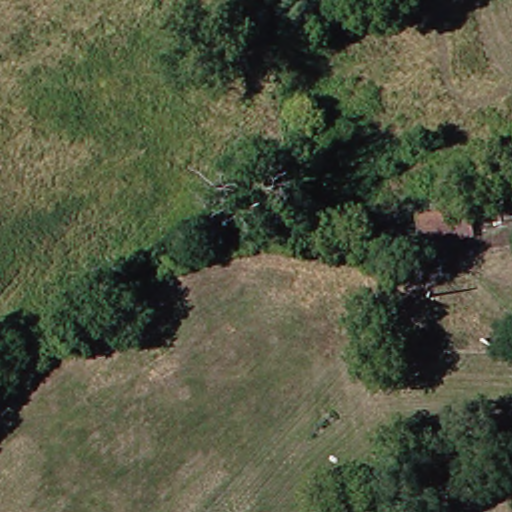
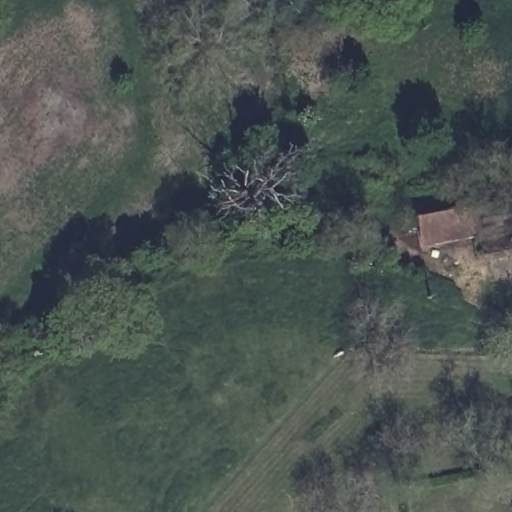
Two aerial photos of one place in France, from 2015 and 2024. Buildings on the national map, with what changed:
unchanged [(461,209),(465,239),(415,247),(409,217),(461,209)]

